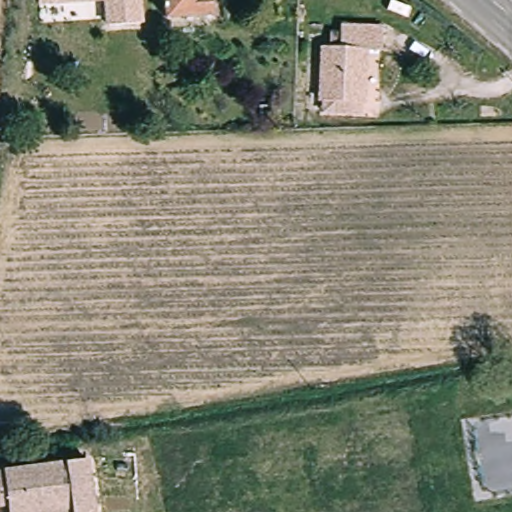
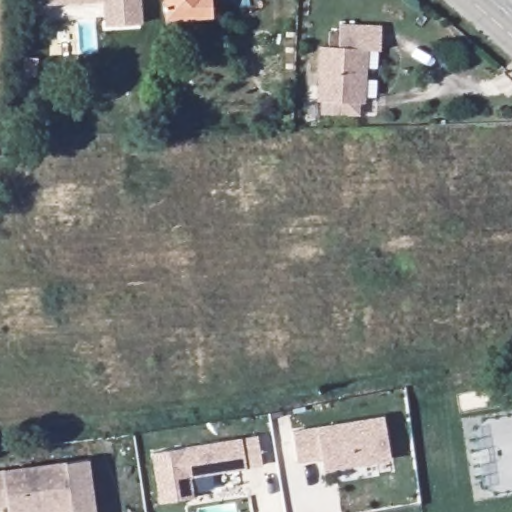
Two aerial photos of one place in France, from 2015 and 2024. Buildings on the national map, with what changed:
unchanged [(106,29),(104,2),(40,6),(39,0),(143,0),(145,26),(106,29)]
unchanged [(202,0),(202,9),(164,9),(164,0),(202,0)]
unchanged [(320,110),(321,99),(317,99),(323,44),(330,44),(332,30),(342,31),(343,24),(385,30),(382,53),(366,51),(361,105),(357,104),(356,115),(320,110)]
new [(318,427),(385,416),(392,460),(325,472),(323,459),(298,464),(292,432),(318,427)]
new [(242,439),(258,436),(262,467),(246,469),(191,479),(195,498),(160,503),(152,454),(242,439)]
unchanged [(94,458),(105,512),(82,512),(81,508),(56,512),(18,512),(17,506),(0,509),(0,474),(94,458)]

